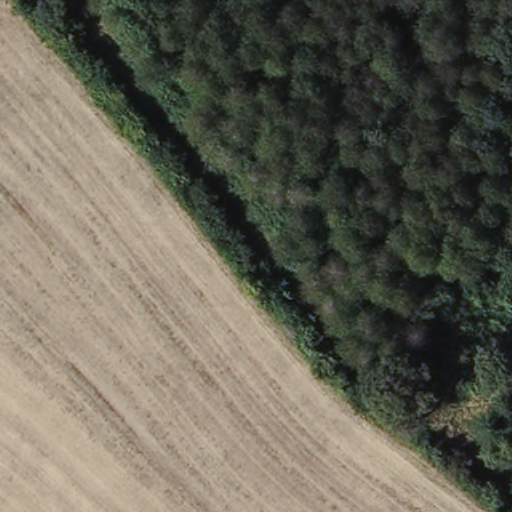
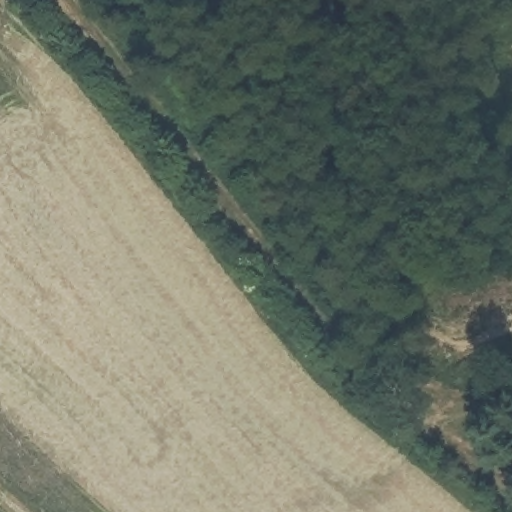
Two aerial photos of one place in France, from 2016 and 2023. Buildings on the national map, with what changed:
[]

